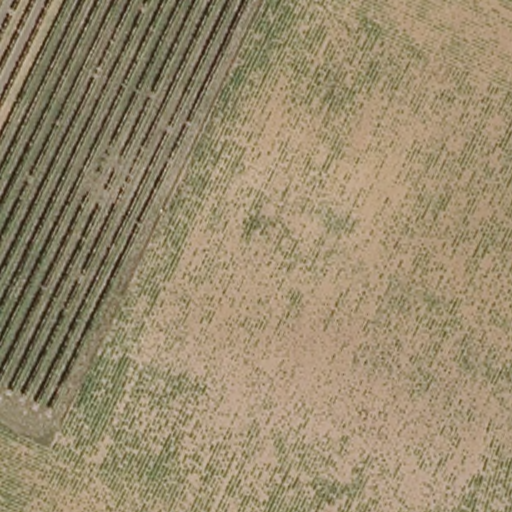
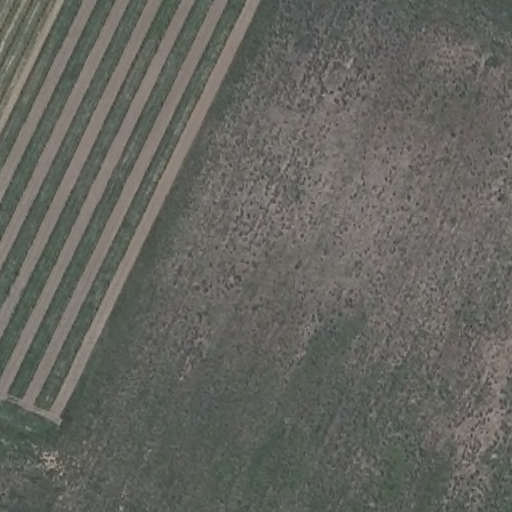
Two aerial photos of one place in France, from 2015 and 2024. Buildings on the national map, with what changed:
[]

